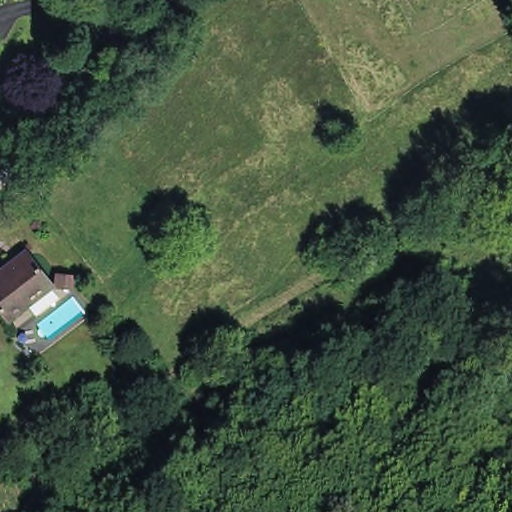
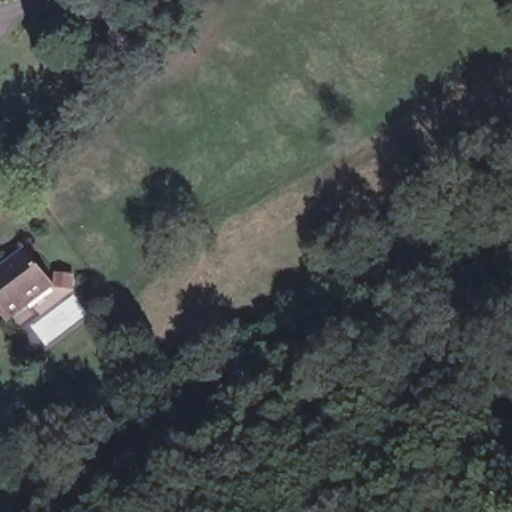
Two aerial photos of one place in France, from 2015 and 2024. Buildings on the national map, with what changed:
unchanged [(0,315),(0,277),(26,257),(51,291),(25,311),(7,325),(2,319),(0,315)]

